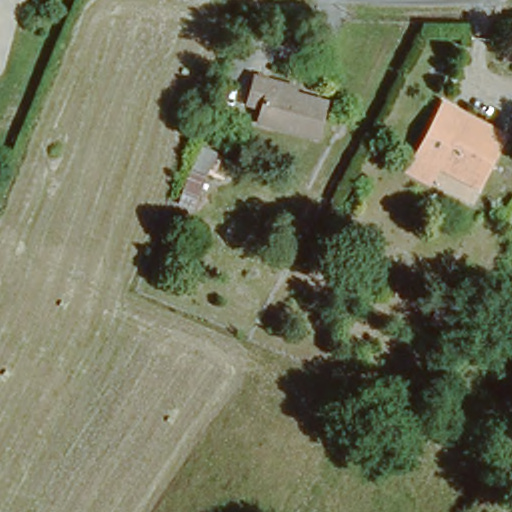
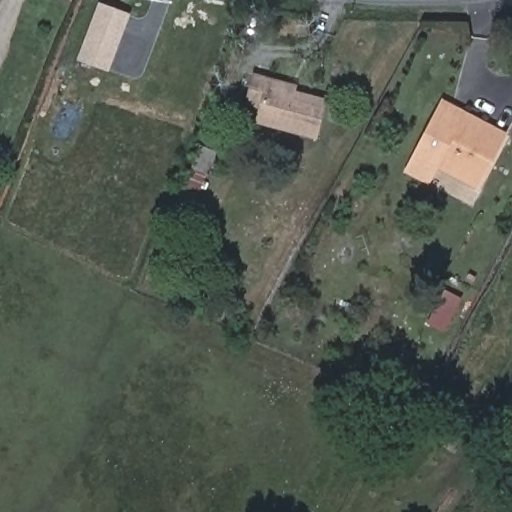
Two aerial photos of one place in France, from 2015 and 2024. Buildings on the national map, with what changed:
new [(110,72),(77,59),(98,3),(131,15),(110,72)]
unchanged [(306,137),(251,120),(255,107),(241,103),(249,73),(264,78),(288,85),(286,91),(317,101),(306,137)]
unchanged [(476,189),(438,170),(428,184),(404,172),(440,99),(504,132),(476,189)]
unchanged [(214,151),(194,202),(178,200),(199,144),(214,151)]

